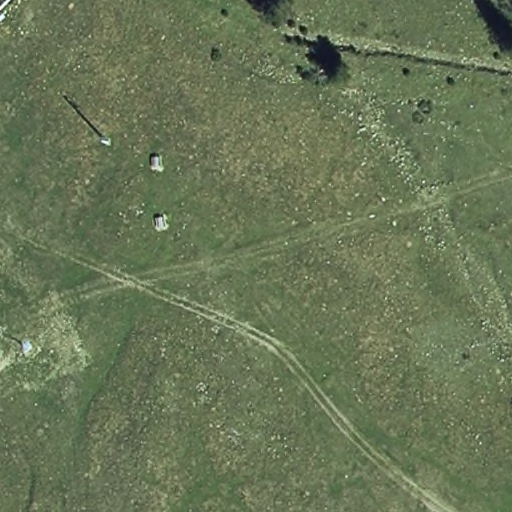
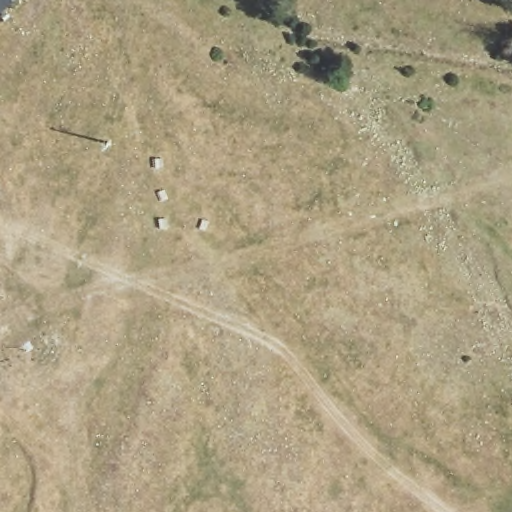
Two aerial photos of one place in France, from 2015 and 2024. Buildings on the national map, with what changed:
unchanged [(0,12),(0,0),(12,0),(0,12)]

